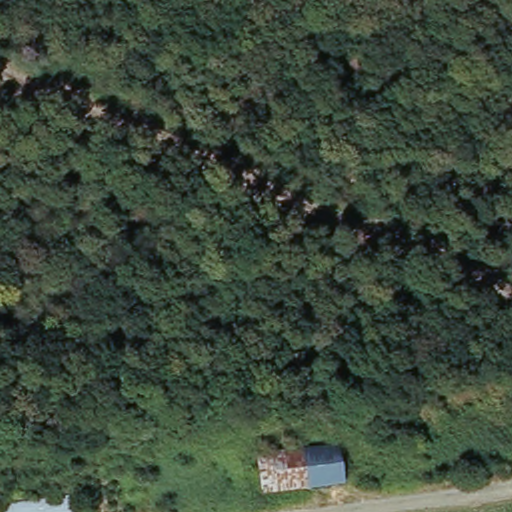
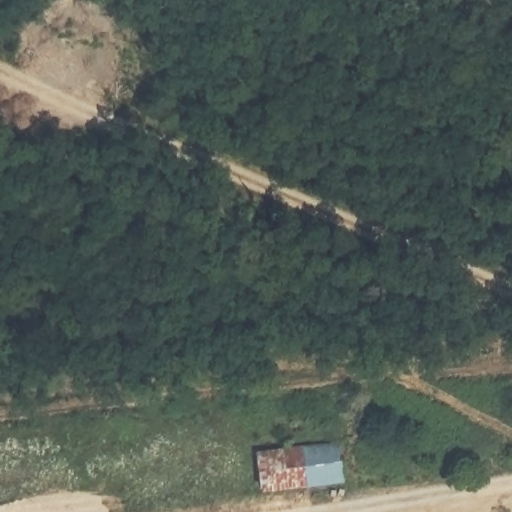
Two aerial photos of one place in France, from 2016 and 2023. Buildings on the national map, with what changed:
unchanged [(261,460),(342,451),(344,487),(266,496),(261,460)]

